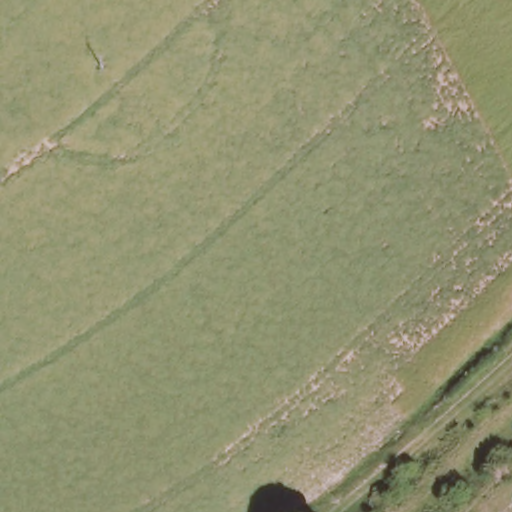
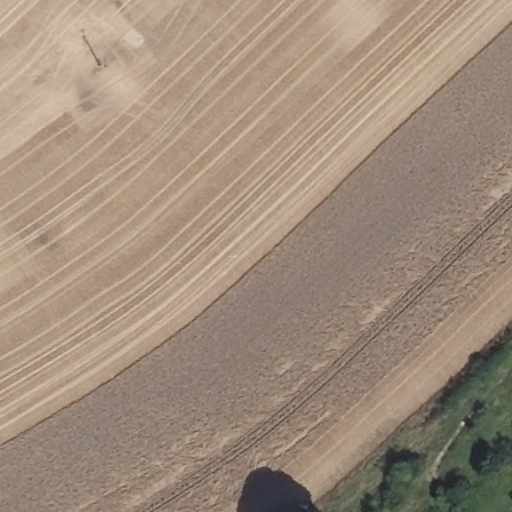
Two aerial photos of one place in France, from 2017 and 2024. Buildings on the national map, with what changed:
[]

